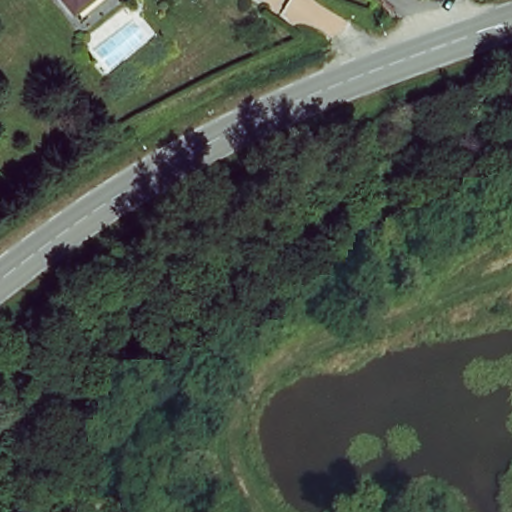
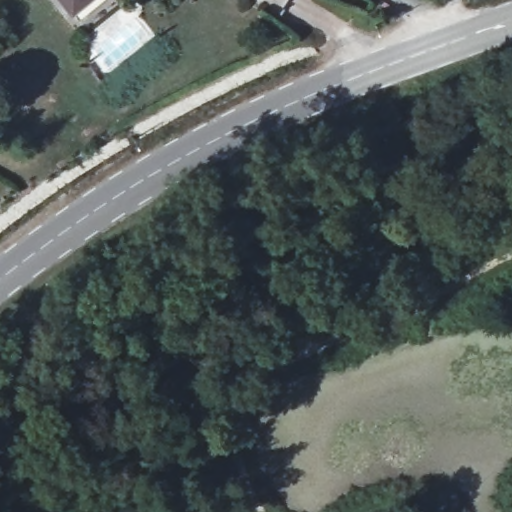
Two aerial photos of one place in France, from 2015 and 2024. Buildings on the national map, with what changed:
unchanged [(72,10),(64,0),(86,0),(72,10)]

